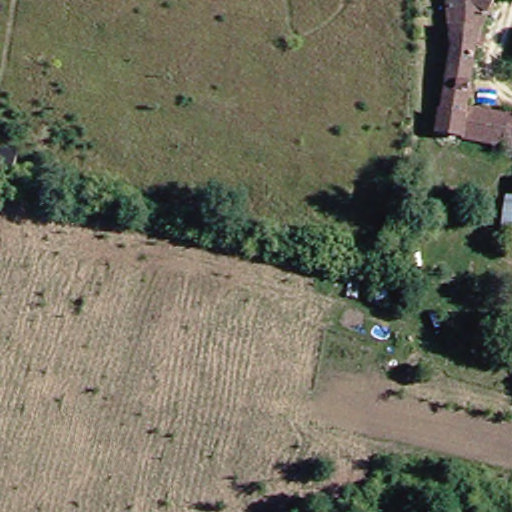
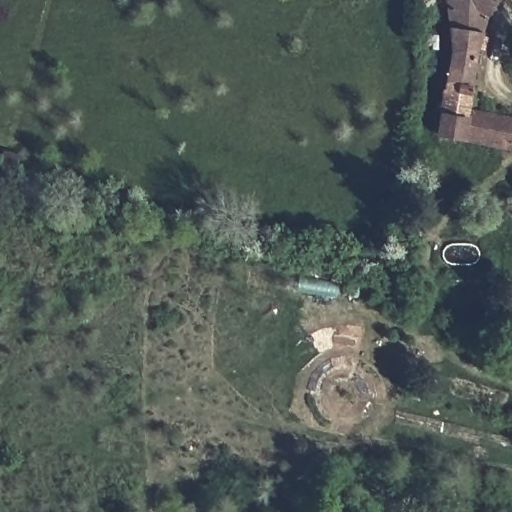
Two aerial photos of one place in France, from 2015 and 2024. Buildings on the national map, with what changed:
unchanged [(473,137),(431,134),(440,15),(442,0),(480,0),(475,113),(473,137)]
unchanged [(473,137),(475,113),(512,115),(512,140),(473,137)]
unchanged [(497,199),(512,200),(512,238),(493,236),(497,199)]
unchanged [(511,335),(512,312),(512,336),(511,335)]

